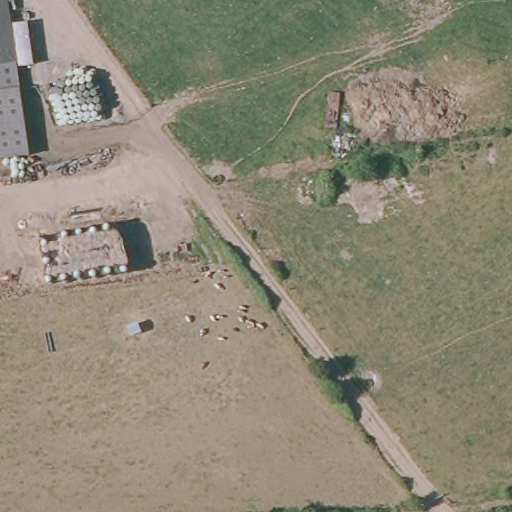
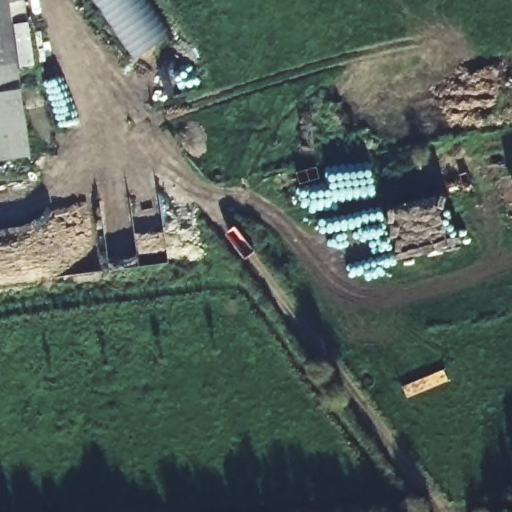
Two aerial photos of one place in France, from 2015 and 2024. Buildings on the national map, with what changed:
unchanged [(23,154),(0,158),(0,0),(4,0),(23,154)]
new [(176,35),(133,63),(94,0),(150,0),(176,35)]

